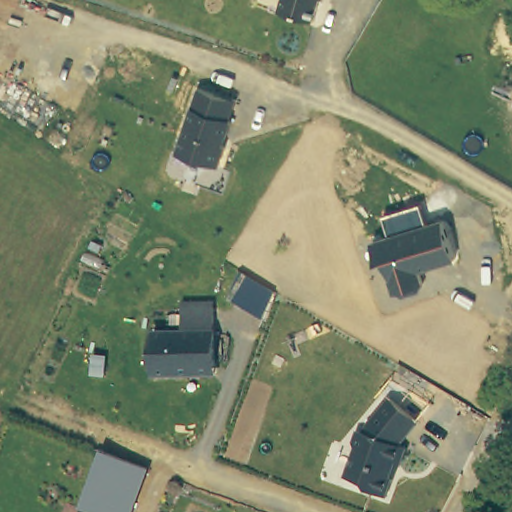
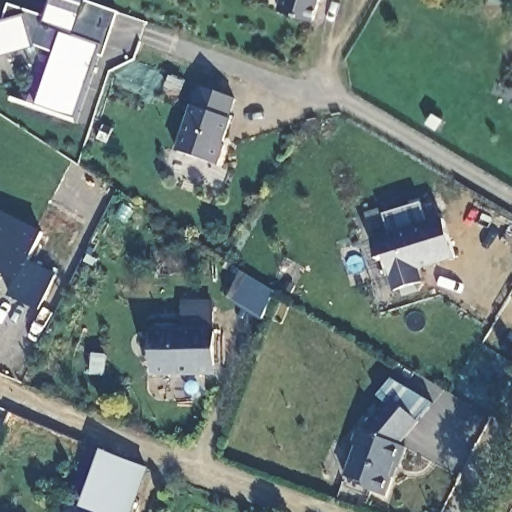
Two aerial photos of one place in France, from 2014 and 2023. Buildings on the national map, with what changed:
new [(10,5),(44,16),(50,0),(76,0),(85,3),(85,1),(118,12),(103,57),(96,55),(75,120),(33,107),(52,51),(35,45),(0,55),(0,22),(5,20),(10,5)]
unchanged [(277,15),(282,0),(323,0),(322,4),(319,3),(312,26),(277,15)]
unchanged [(227,122),(229,124),(220,149),(223,150),(216,169),(176,155),(198,90),(234,103),(227,122)]
unchanged [(389,277),(386,260),(378,263),(372,240),(390,234),(384,215),(419,204),(426,222),(443,218),(457,260),(419,270),(424,283),(417,291),(401,297),(395,292),(389,277)]
new [(58,275),(37,312),(9,296),(18,281),(0,275),(0,211),(43,234),(30,261),(58,275)]
new [(276,291),(264,320),(226,297),(240,270),(276,291)]
unchanged [(206,378),(151,378),(151,335),(181,335),(181,310),(211,310),(211,369),(211,378),(206,378)]
unchanged [(415,426),(396,449),(396,450),(403,453),(397,470),(392,468),(388,480),(389,483),(382,501),(365,495),(362,490),(343,482),(353,454),(351,448),(355,436),(362,438),(364,430),(387,402),(415,426)]
unchanged [(84,512),(103,458),(118,465),(144,474),(130,512),(84,512)]

